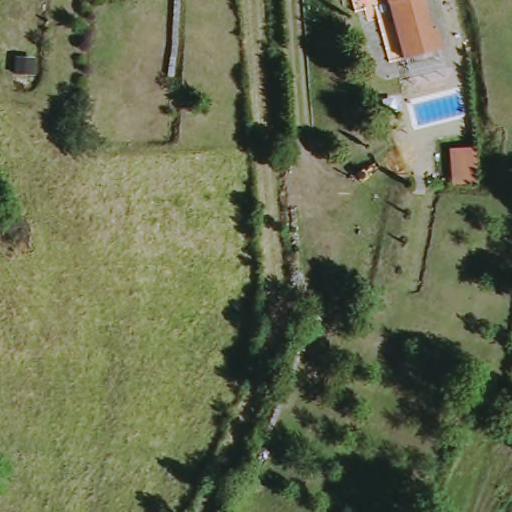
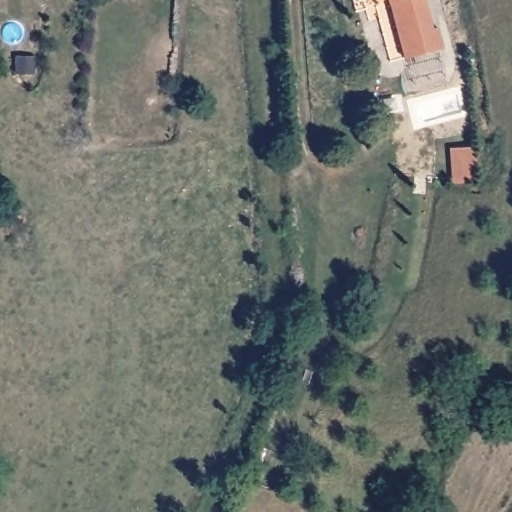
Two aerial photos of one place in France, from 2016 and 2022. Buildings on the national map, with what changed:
unchanged [(451,51),(410,62),(395,9),(361,17),(356,0),(429,0),(437,31),(444,29),(451,51)]
unchanged [(5,57),(23,58),(23,72),(4,72),(5,57)]

